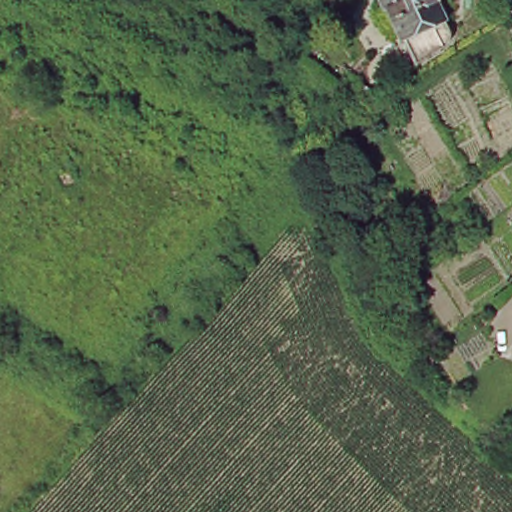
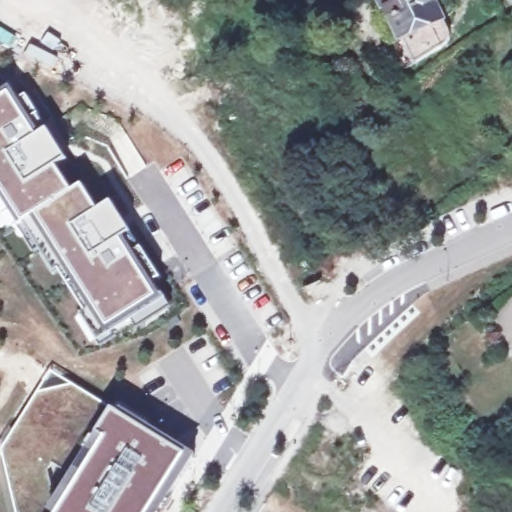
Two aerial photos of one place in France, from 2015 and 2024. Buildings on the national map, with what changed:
unchanged [(414,64),(383,0),(436,0),(456,43),(414,64)]
unchanged [(507,67),(512,65),(512,81),(507,67)]
new [(37,134),(48,128),(67,159),(57,164),(73,192),(84,185),(100,209),(112,203),(131,232),(122,236),(165,299),(110,334),(36,215),(22,223),(0,190),(0,93),(7,89),(37,134)]
unchanged [(340,193),(335,144),(349,128),(357,190),(340,193)]
new [(27,502),(56,457),(61,462),(97,400),(115,411),(193,460),(169,496),(162,492),(150,512),(20,512),(27,502)]

